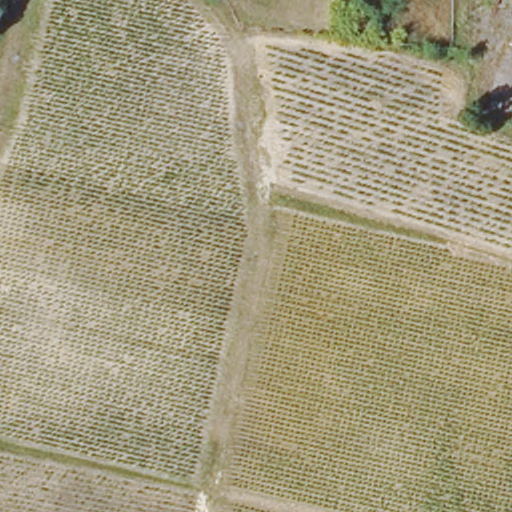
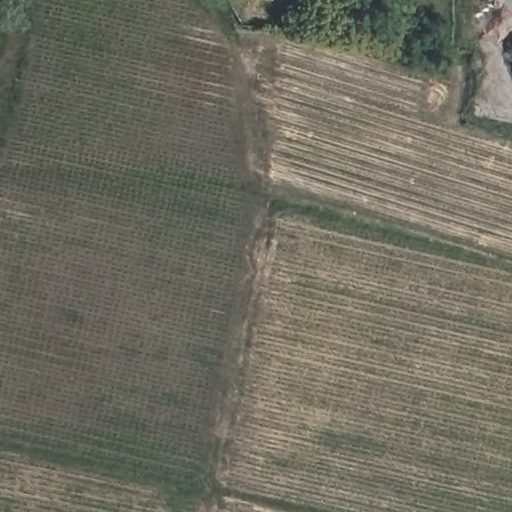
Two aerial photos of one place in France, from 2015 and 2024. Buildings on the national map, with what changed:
[]

